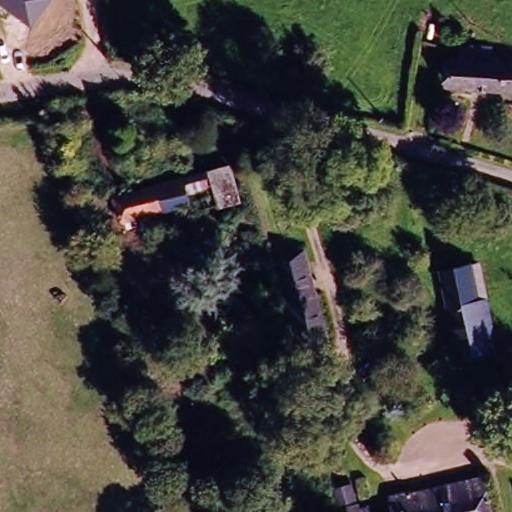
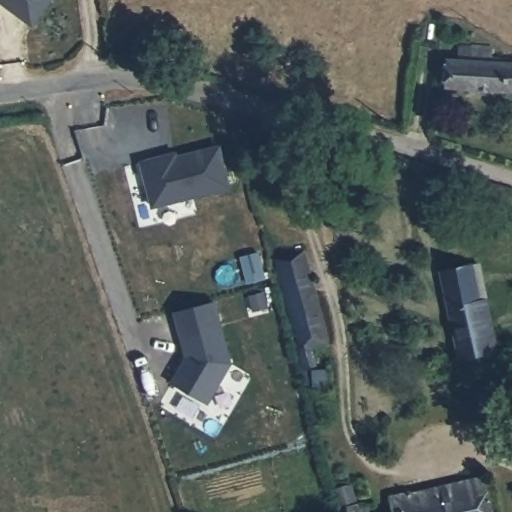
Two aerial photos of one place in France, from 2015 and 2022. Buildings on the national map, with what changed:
unchanged [(0,1),(0,0),(52,0),(33,26),(0,1)]
unchanged [(450,61),(465,61),(466,52),(488,53),(488,63),(512,63),(512,92),(448,92),(450,61)]
new [(230,188),(153,207),(142,163),(169,156),(176,154),(177,158),(219,147),(230,188)]
demolished [(237,193),(123,217),(118,187),(230,162),(237,193)]
unchanged [(325,336),(300,342),(276,244),(299,238),(325,336)]
unchanged [(500,347),(457,360),(436,276),(481,266),(500,347)]
new [(221,327),(232,366),(207,406),(172,385),(181,370),(187,359),(182,338),(221,327)]
unchanged [(489,512),(359,512),(356,500),(480,470),(489,512)]

